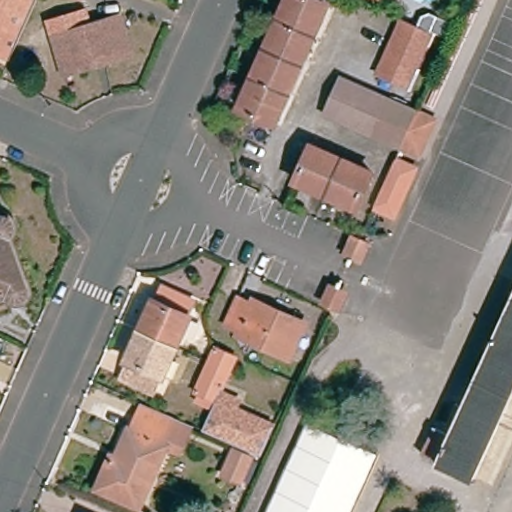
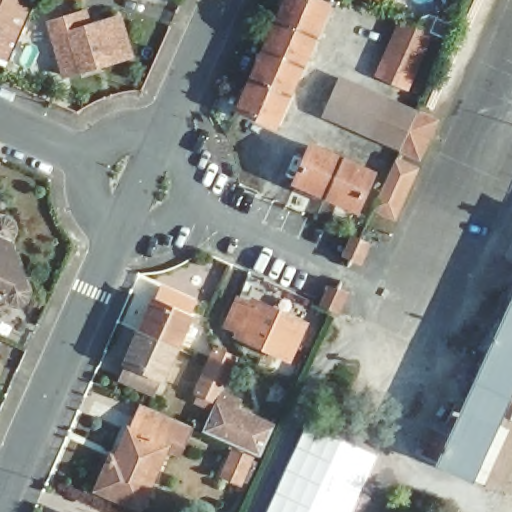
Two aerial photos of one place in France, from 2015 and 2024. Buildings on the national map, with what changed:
unchanged [(9,65),(0,61),(0,0),(18,0),(35,7),(9,65)]
unchanged [(289,0),(301,0),(328,11),(276,130),(240,115),(289,0)]
unchanged [(377,0),(380,0),(380,1),(377,0)]
unchanged [(53,39),(66,36),(121,19),(132,57),(114,62),(66,77),(53,39)]
unchanged [(406,93),(380,81),(404,26),(431,37),(406,93)]
unchanged [(372,129),(327,110),(342,76),(386,95),(372,129)]
unchanged [(421,149),(402,142),(372,129),(386,95),(417,109),(435,117),(421,149)]
unchanged [(308,153),(367,180),(352,215),(292,188),(308,153)]
unchanged [(395,162),(414,170),(393,216),(375,207),(395,162)]
unchanged [(1,231),(3,232),(5,234),(6,236),(7,238),(7,240),(7,242),(6,244),(3,248),(23,302),(22,304),(22,306),(20,308),(19,310),(17,311),(14,311),(12,311),(10,311),(8,310),(6,308),(4,307),(0,308),(0,231),(1,231)]
unchanged [(369,243),(364,252),(363,253),(362,254),(360,255),(359,255),(358,255),(356,255),(354,253),(360,240),(369,243)]
unchanged [(190,322),(192,323),(178,353),(141,337),(155,307),(162,292),(169,295),(197,307),(190,322)]
unchanged [(335,296),(338,297),(340,297),(341,299),(342,301),(342,303),(338,313),(329,309),(335,296)]
unchanged [(452,411),(458,413),(512,296),(512,394),(471,485),(430,467),(417,462),(433,426),(443,430),(452,411)]
unchanged [(291,360),(239,336),(241,332),(227,326),(238,300),(252,306),(254,301),(307,325),(291,360)]
unchanged [(128,367),(141,337),(178,353),(165,383),(162,382),(156,397),(128,385),(121,382),(128,367)]
unchanged [(217,402),(214,401),(210,408),(195,402),(199,393),(196,392),(203,377),(210,362),(217,347),(237,356),(230,372),(223,387),(220,395),(239,403),(236,412),(275,428),(275,429),(261,459),(203,432),(217,402)]
unchanged [(144,512),(126,512),(100,500),(113,467),(118,469),(130,441),(133,442),(139,428),(144,417),(176,431),(171,442),(164,456),(167,457),(144,512)]
unchanged [(268,512),(307,425),(376,455),(351,512),(268,512)]
unchanged [(243,483),(225,475),(235,452),(254,460),(243,483)]

